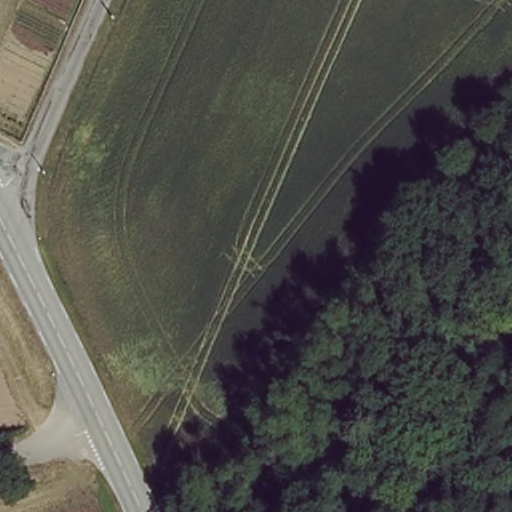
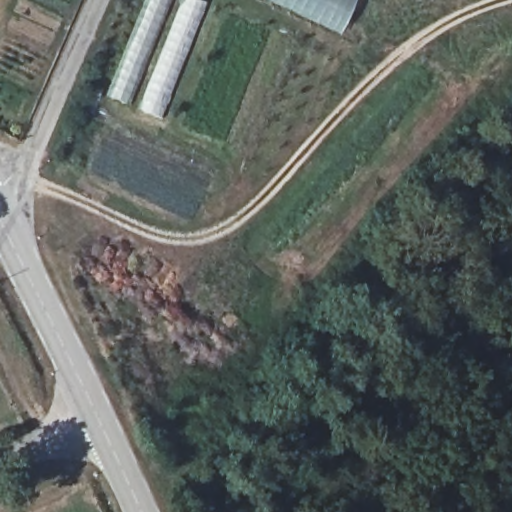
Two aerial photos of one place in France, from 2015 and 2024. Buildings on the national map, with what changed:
new [(144,0),(199,0),(204,2),(160,116),(104,94),(144,0)]
new [(268,0),(355,0),(339,34),(268,0)]

